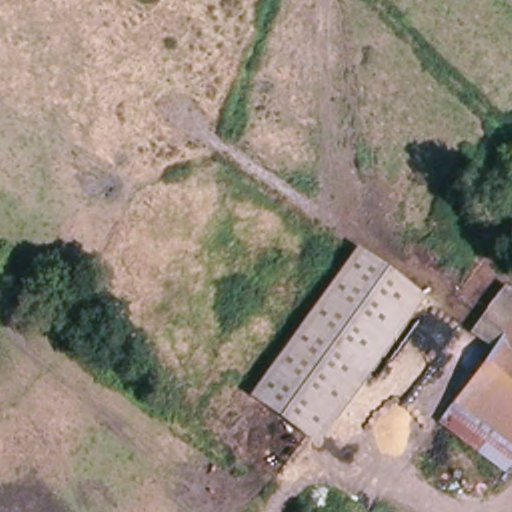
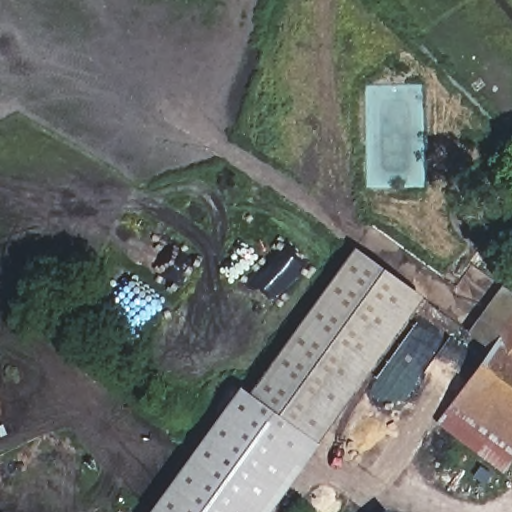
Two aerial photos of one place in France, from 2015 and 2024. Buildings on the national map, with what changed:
unchanged [(255,398),(263,386),(360,255),(417,298),(313,437),(311,440),(308,443),(253,400),(255,398)]
unchanged [(504,290),(512,296),(512,320),(495,345),(491,350),(470,335),(476,326),(504,290)]
unchanged [(495,345),(512,320),(512,438),(456,398),(491,350),(495,345)]
new [(255,398),(253,400),(308,443),(311,440),(320,446),(272,512),(152,512),(242,389),(255,398)]
unchanged [(503,472),(438,425),(456,398),(512,438),(512,461),(503,472)]

